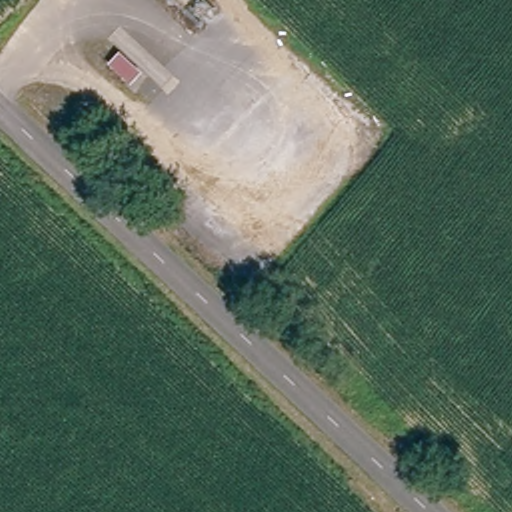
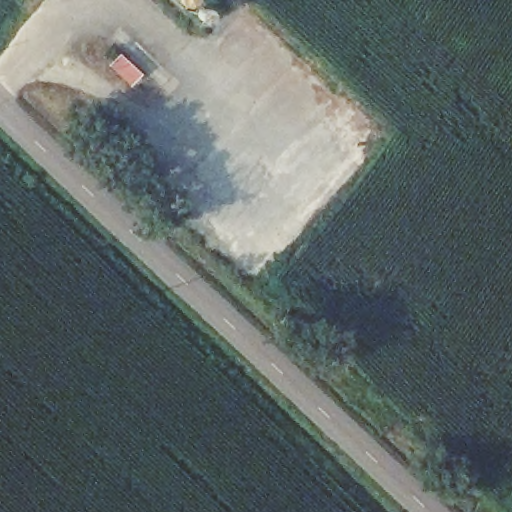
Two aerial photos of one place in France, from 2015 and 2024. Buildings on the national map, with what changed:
unchanged [(207,2),(192,16),(177,0),(206,0),(207,2)]
unchanged [(142,72),(133,82),(114,65),(124,54),(142,72)]

